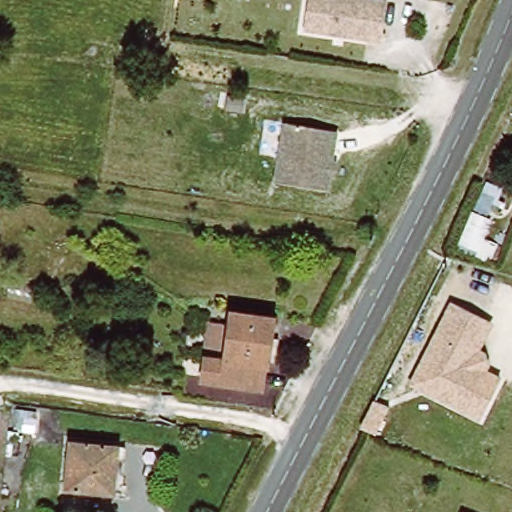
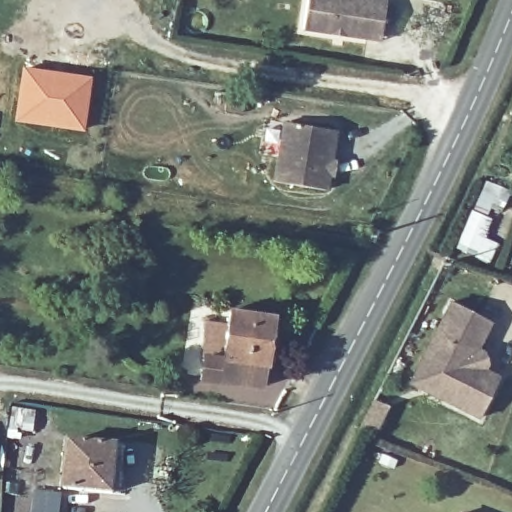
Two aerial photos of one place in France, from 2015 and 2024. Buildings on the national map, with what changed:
unchanged [(302,0),(355,0),(380,4),(374,45),(297,32),(302,0)]
new [(24,69),(52,74),(52,82),(88,88),(82,129),(16,120),(24,69)]
unchanged [(326,179),(322,178),(320,194),(268,186),(277,126),(329,134),(326,151),(322,151),(319,164),(328,166),(326,179)]
unchanged [(497,195),(488,215),(493,217),(483,236),(498,243),(490,261),(457,246),(483,190),(497,195)]
unchanged [(492,321),(480,348),(485,350),(489,362),(486,369),(500,376),(478,420),(406,382),(447,301),(492,321)]
unchanged [(198,341),(221,343),(225,316),(266,322),(260,371),(256,371),(252,395),(191,385),(198,341)]
unchanged [(117,450),(109,497),(61,491),(67,441),(117,450)]

